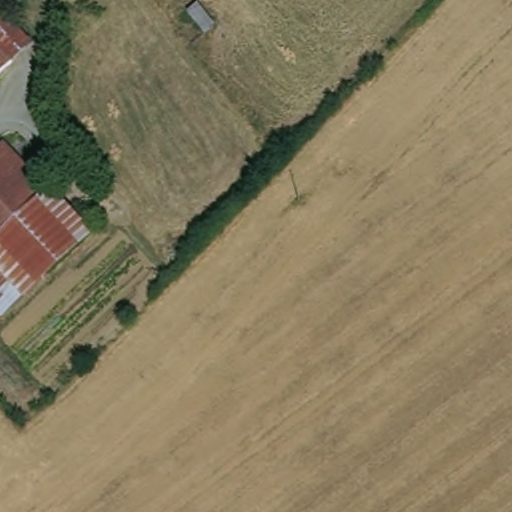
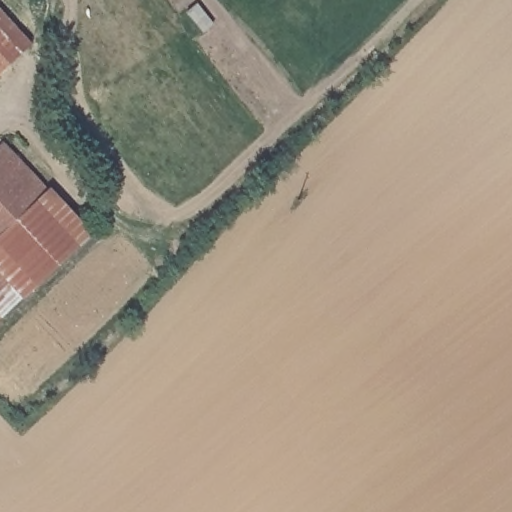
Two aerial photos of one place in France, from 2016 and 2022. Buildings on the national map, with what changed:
unchanged [(12,19),(33,40),(25,47),(16,55),(12,59),(0,48),(0,7),(12,19)]
unchanged [(12,59),(10,61),(0,70),(0,48),(12,59)]
unchanged [(8,140),(55,188),(0,240),(0,148),(8,140)]
unchanged [(55,188),(95,230),(4,319),(0,315),(0,240),(55,188)]

